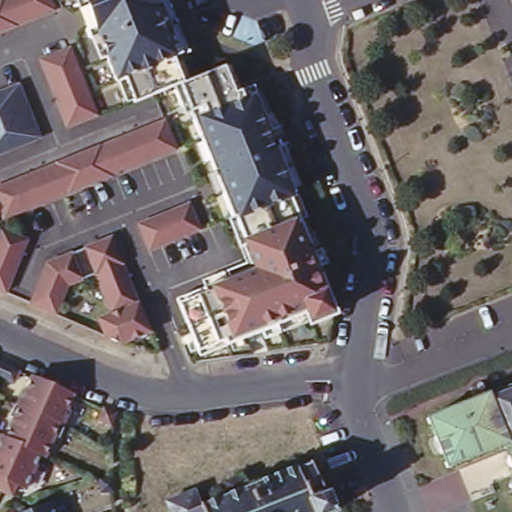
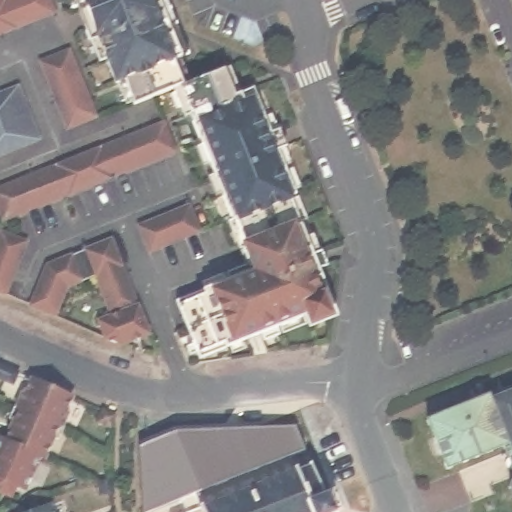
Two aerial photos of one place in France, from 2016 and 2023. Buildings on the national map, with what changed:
unchanged [(57,0),(61,9),(0,30),(0,0),(57,0)]
unchanged [(129,74),(120,77),(103,33),(99,35),(94,32),(91,26),(93,20),(97,19),(90,0),(156,0),(179,55),(188,79),(139,99),(129,74)]
unchanged [(179,55),(156,0),(174,0),(194,51),(179,55)]
unchanged [(73,42),(103,111),(73,122),(46,54),(73,42)]
unchanged [(306,326),(302,314),(224,344),(214,347),(198,354),(179,304),(201,294),(210,290),(253,273),(242,243),(247,241),(238,221),(190,112),(181,86),(225,69),(234,93),(242,90),(245,98),(252,95),(294,200),(285,203),(295,226),(332,312),(306,326)]
unchanged [(24,77),(44,135),(0,151),(0,85),(24,77)]
unchanged [(165,116),(175,146),(4,216),(0,206),(0,182),(165,116)]
unchanged [(149,253),(139,227),(191,206),(202,231),(149,253)]
unchanged [(7,293),(0,290),(0,228),(28,240),(7,293)]
unchanged [(118,348),(113,338),(104,339),(97,319),(109,315),(96,279),(63,290),(55,315),(32,306),(48,266),(110,241),(150,331),(118,348)]
unchanged [(6,367),(18,372),(12,383),(1,378),(6,367)]
unchanged [(72,386),(66,401),(68,402),(62,416),(59,414),(44,448),(39,446),(25,480),(16,476),(11,486),(0,481),(0,428),(1,427),(5,429),(19,397),(17,396),(23,382),(25,383),(31,368),(72,386)]
unchanged [(493,390),(512,382),(512,461),(505,441),(451,462),(431,414),(493,389),(493,390)]
unchanged [(115,415),(110,426),(99,421),(104,410),(115,415)]
new [(138,450),(185,431),(293,423),(302,449),(193,491),(179,496),(139,512),(138,450)]
unchanged [(337,512),(179,512),(198,506),(193,491),(204,486),(210,501),(321,457),(345,509),(337,512)]
unchanged [(112,480),(113,493),(100,493),(100,481),(112,480)]
unchanged [(55,500),(60,512),(22,512),(55,500)]

